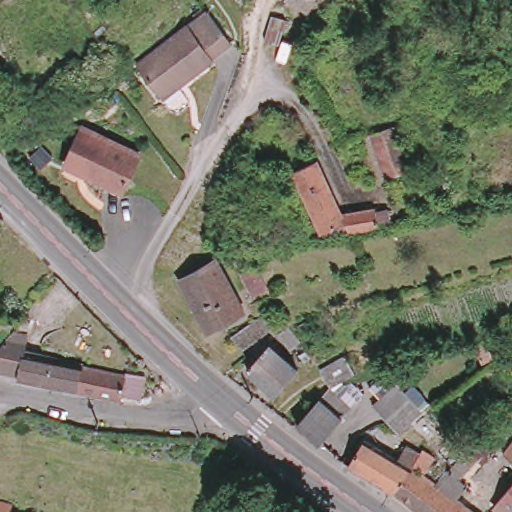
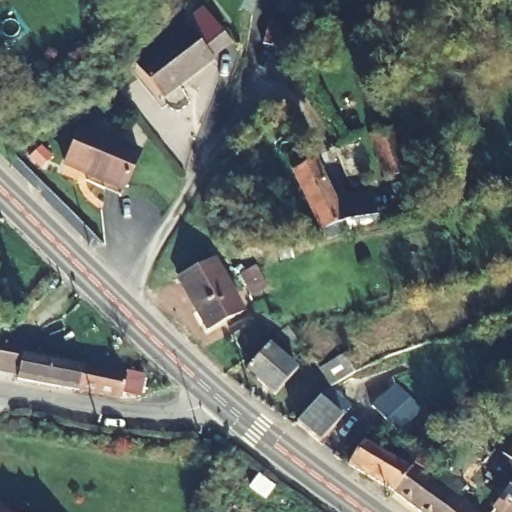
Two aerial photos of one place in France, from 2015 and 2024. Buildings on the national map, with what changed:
unchanged [(210,18),(234,49),(217,62),(219,64),(167,103),(142,70),(210,18)]
unchanged [(140,163),(117,198),(86,177),(87,174),(66,160),(87,127),(140,163)]
unchanged [(411,171),(387,178),(376,142),(395,136),(400,134),(411,171)]
unchanged [(343,215),(380,210),(384,231),(352,236),(349,230),(324,233),(296,174),(310,168),(321,164),(343,215)]
unchanged [(52,268),(35,292),(17,275),(18,273),(5,261),(15,251),(10,245),(20,234),(52,268)]
unchanged [(237,269),(255,261),(269,288),(251,296),(237,269)]
unchanged [(220,262),(246,313),(211,331),(182,279),(218,262),(220,262)]
unchanged [(262,314),(275,329),(246,355),(233,339),(262,314)]
unchanged [(301,344),(292,351),(280,334),(290,329),(301,344)]
unchanged [(0,349),(11,331),(26,335),(22,351),(18,350),(16,360),(23,362),(22,372),(20,380),(0,373),(0,349)]
unchanged [(301,372),(280,397),(251,372),(272,347),(301,372)]
unchanged [(86,363),(80,391),(20,380),(22,372),(23,362),(16,360),(18,350),(86,363)]
unchanged [(320,368),(346,355),(356,375),(330,387),(320,368)]
unchanged [(130,400),(80,391),(86,363),(126,370),(137,381),(133,400),(130,400)]
unchanged [(171,389),(167,392),(163,388),(167,385),(171,389)]
unchanged [(333,402),(336,398),(341,401),(339,403),(350,413),(317,451),(295,430),(325,396),(333,402)]
unchanged [(415,408),(416,409),(429,423),(408,441),(405,443),(395,433),(379,419),(401,396),(415,408)]
unchanged [(426,442),(437,428),(458,444),(454,449),(447,457),(426,442)]
unchanged [(396,487),(411,468),(432,484),(452,461),(475,436),(491,450),(479,464),(473,460),(453,481),(463,489),(454,501),(469,512),(416,512),(392,493),(396,487)]
unchanged [(499,453),(512,439),(512,464),(499,453)]
unchanged [(391,492),(346,467),(361,441),(395,461),(405,446),(418,453),(420,451),(432,458),(424,472),(413,467),(411,468),(396,487),(392,493),(391,492)]
unchanged [(500,512),(497,510),(495,508),(510,488),(511,485),(512,484),(512,512),(500,512)]
unchanged [(14,508),(30,512),(0,512),(0,490),(0,491),(17,495),(17,497),(14,508)]

